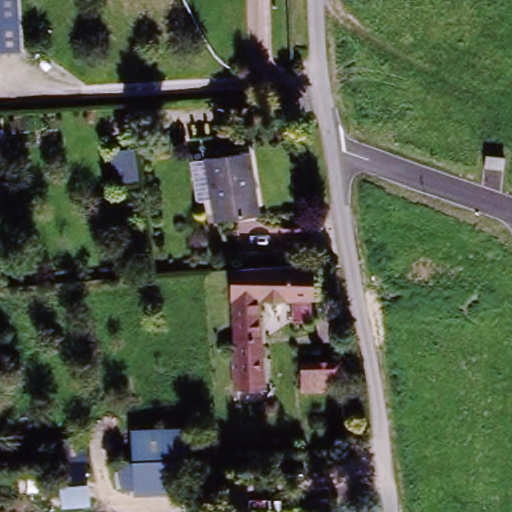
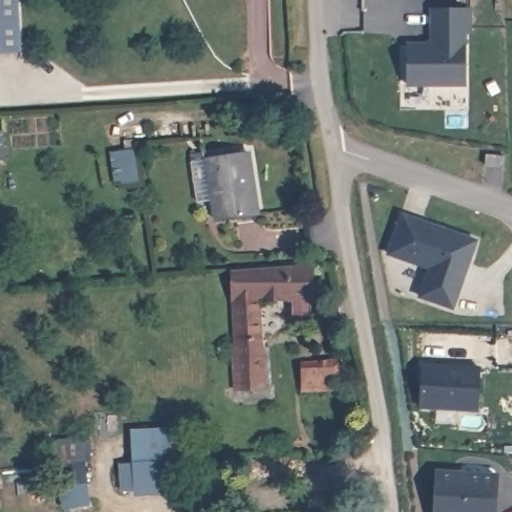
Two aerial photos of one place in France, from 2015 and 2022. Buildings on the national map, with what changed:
unchanged [(0,54),(0,0),(15,0),(11,55),(0,54)]
new [(408,44),(434,44),(434,9),(471,10),(471,34),(466,33),(464,86),(407,84),(408,44)]
unchanged [(255,159),(258,217),(213,219),(212,160),(255,159)]
new [(420,219),(419,221),(433,226),(434,223),(461,233),(478,239),(474,252),(454,306),(421,294),(431,266),(389,252),(404,212),(420,219)]
new [(303,266),(307,323),(289,325),(286,302),(254,303),(259,387),(241,390),(232,268),(303,266)]
demolished [(266,386),(248,386),(246,302),(264,302),(266,386)]
new [(481,368),(479,413),(418,410),(422,366),(481,368)]
unchanged [(342,382),(300,384),(301,369),(342,367),(342,382)]
unchanged [(121,457),(132,457),(131,427),(192,424),(193,442),(209,441),(209,448),(194,451),(196,467),(189,467),(190,487),(120,490),(121,457)]
unchanged [(62,436),(89,434),(90,501),(63,503),(62,436)]
new [(498,473),(496,512),(435,512),(438,470),(498,473)]

